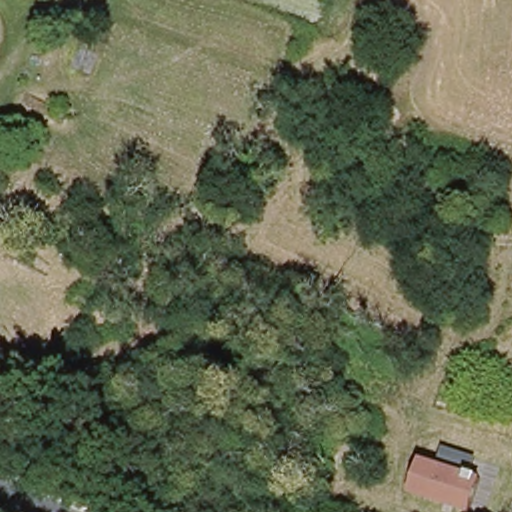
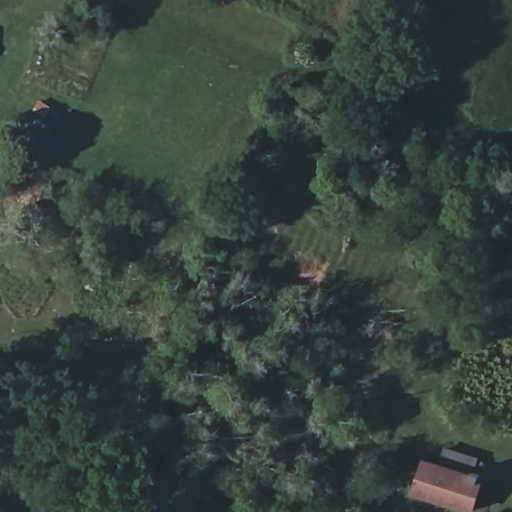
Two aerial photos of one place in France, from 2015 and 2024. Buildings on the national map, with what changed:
unchanged [(477,512),(417,482),(429,454),(487,483),(478,512),(477,512)]

